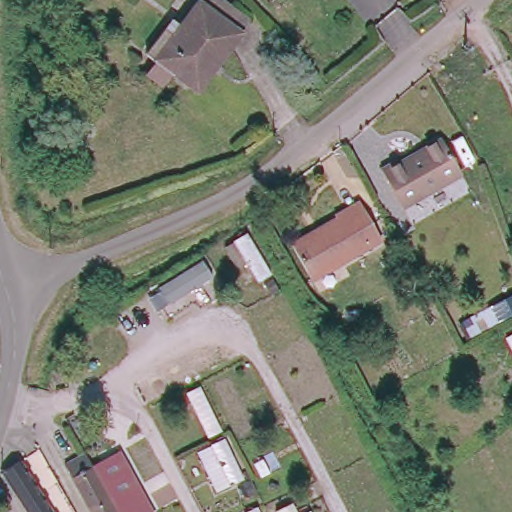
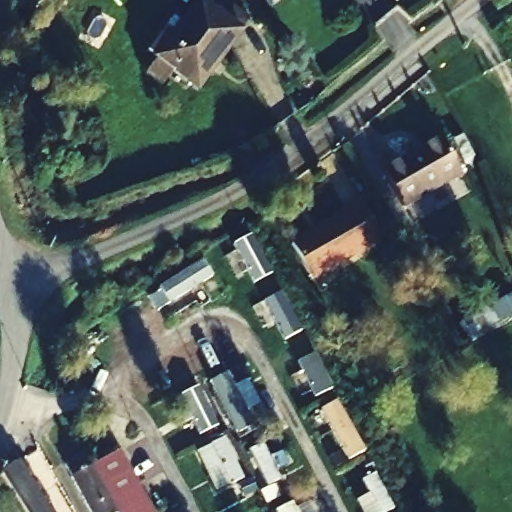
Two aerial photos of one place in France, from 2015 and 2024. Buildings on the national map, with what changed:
unchanged [(158,59),(149,51),(169,26),(177,32),(204,0),(225,0),(254,24),(198,91),(173,71),(163,84),(148,71),(158,59)]
unchanged [(436,133),(463,182),(405,215),(378,166),(436,133)]
unchanged [(381,238),(313,277),(293,243),(363,204),(381,238)]
unchanged [(512,293),(512,319),(472,339),(462,318),(512,293)]
unchanged [(73,478),(74,476),(66,463),(85,452),(118,512),(93,512),(73,478)]
unchanged [(22,461),(53,512),(28,512),(4,472),(22,461)]

